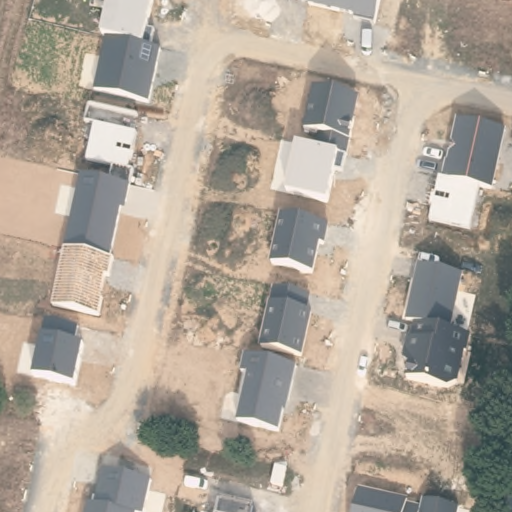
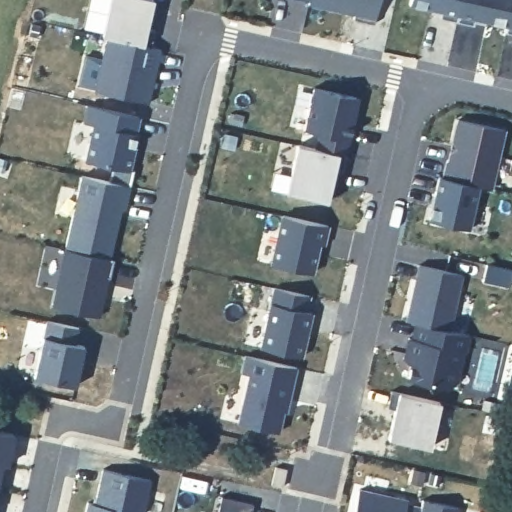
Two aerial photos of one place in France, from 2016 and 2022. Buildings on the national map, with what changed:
unchanged [(160,49),(150,102),(95,91),(107,38),(98,36),(106,0),(152,0),(144,46),(160,49)]
unchanged [(352,18),(353,15),(306,5),(308,1),(304,0),(379,0),(373,23),(352,18)]
unchanged [(458,0),(454,19),(441,17),(443,11),(405,6),(407,0),(458,0)]
new [(507,26),(475,19),(474,23),(454,19),(458,0),(512,0),(512,33),(506,32),(507,26)]
unchanged [(295,145),(318,149),(321,134),(306,130),(314,88),(360,99),(340,170),(333,168),(325,202),(284,193),(295,145)]
unchanged [(85,104),(137,116),(132,134),(136,135),(130,169),(134,170),(125,209),(121,208),(108,278),(103,277),(98,315),(51,306),(80,175),(107,180),(113,165),(86,161),(93,123),(81,121),(85,104)]
unchanged [(505,130),(490,189),(477,186),(469,229),(427,221),(439,178),(442,179),(456,119),(505,130)]
unchanged [(269,262),(280,216),(328,225),(325,244),(318,242),(313,272),(269,262)]
unchanged [(463,275),(452,333),(472,336),(460,380),(449,387),(410,378),(405,360),(415,323),(406,321),(418,267),(463,275)]
unchanged [(258,348),(275,288),(310,296),(306,311),(310,312),(302,357),(258,348)]
unchanged [(78,327),(73,343),(82,345),(73,385),(32,375),(45,320),(78,327)]
unchanged [(297,368),(285,412),(281,412),(278,431),(235,420),(246,375),(239,372),(243,355),(297,368)]
new [(391,390),(440,401),(430,447),(389,438),(395,409),(387,407),(391,390)]
unchanged [(7,463),(0,463),(0,431),(12,434),(7,463)]
unchanged [(144,512),(84,512),(85,501),(94,503),(101,469),(151,480),(144,512)]
unchanged [(408,499),(406,503),(418,507),(420,499),(460,507),(459,512),(353,512),(360,489),(408,499)]
unchanged [(221,496),(251,503),(249,512),(218,512),(221,496)]

